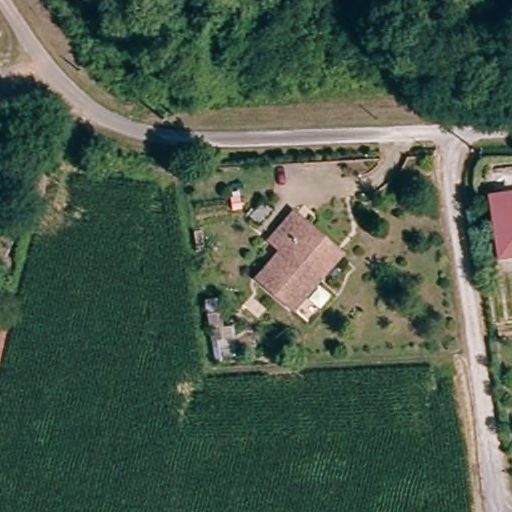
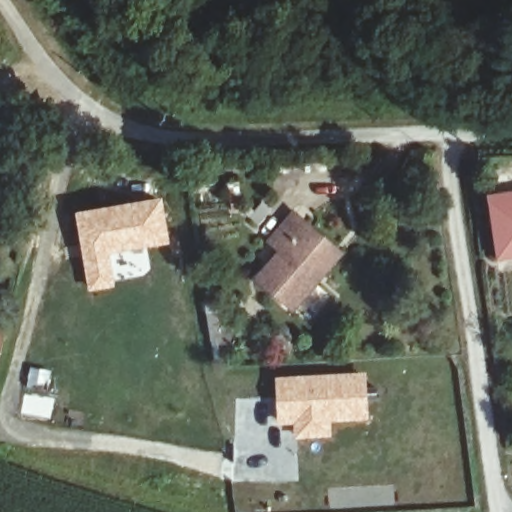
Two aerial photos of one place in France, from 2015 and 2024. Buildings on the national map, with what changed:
new [(162,197),(171,244),(113,257),(116,287),(88,291),(75,212),(162,197)]
unchanged [(497,260),(487,205),(512,201),(512,258),(497,260)]
unchanged [(257,282),(282,254),(268,242),(291,216),(304,228),(342,260),(315,291),(293,314),(257,282)]
new [(226,297),(237,356),(216,360),(204,300),(226,297)]
unchanged [(0,358),(0,329),(6,330),(4,339),(0,358)]
new [(366,371),(368,420),(331,422),(332,437),(293,439),(292,426),(277,426),(274,376),(366,371)]

